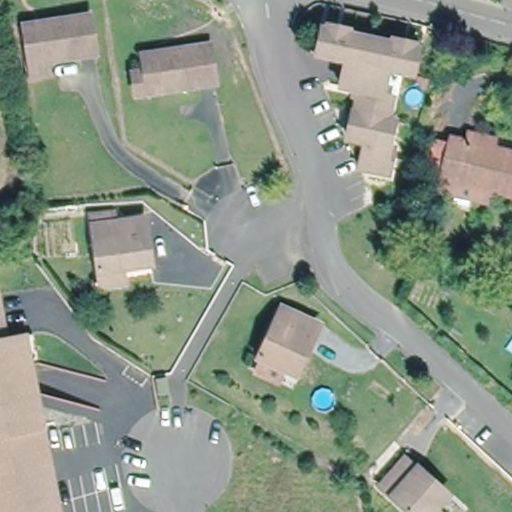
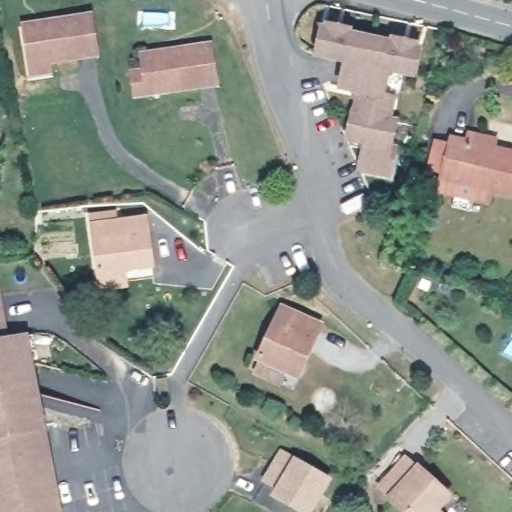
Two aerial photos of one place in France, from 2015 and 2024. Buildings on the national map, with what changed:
unchanged [(35,76),(33,60),(29,28),(28,21),(47,19),(92,14),(97,52),(53,57),(56,73),(35,76)]
unchanged [(415,46),(410,71),(387,66),(382,92),(392,95),(387,116),(394,118),(389,144),(394,145),(388,173),(360,166),(366,140),(348,136),(358,88),(340,84),(346,58),(317,51),(322,26),(415,46)]
unchanged [(139,70),(153,68),(151,55),(151,51),(168,48),(218,42),(223,81),(156,91),(142,92),(139,70)]
unchanged [(447,169),(432,166),(439,142),(454,146),(455,141),(468,145),(471,135),(496,141),(493,151),(512,156),(512,194),(445,177),(447,169)]
unchanged [(106,283),(104,268),(98,221),(150,214),(153,231),(156,261),(148,262),(125,265),(127,280),(106,283)]
unchanged [(2,276),(12,338),(26,335),(30,360),(35,363),(48,441),(58,512),(0,512),(0,276),(2,276)]
unchanged [(261,367),(266,352),(285,302),(322,315),(303,366),(292,362),(286,376),(261,367)]
new [(295,455),(334,478),(314,512),(300,512),(270,495),(275,488),(262,481),(280,449),(295,455)]
unchanged [(387,486),(413,458),(453,497),(441,509),(444,512),(414,512),(387,486)]

